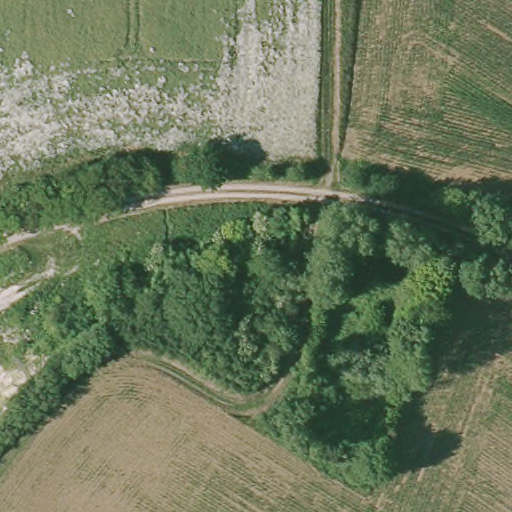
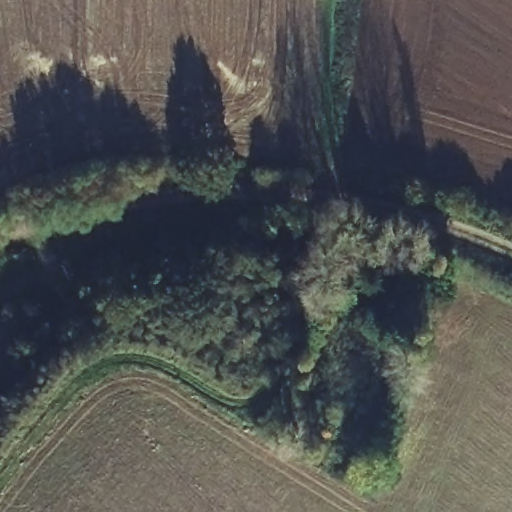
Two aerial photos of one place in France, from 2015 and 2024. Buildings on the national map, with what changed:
unchanged [(384,267),(416,271),(413,289),(381,283),(384,267)]

